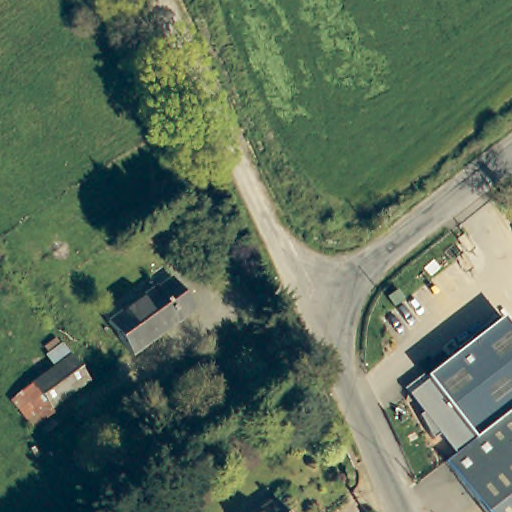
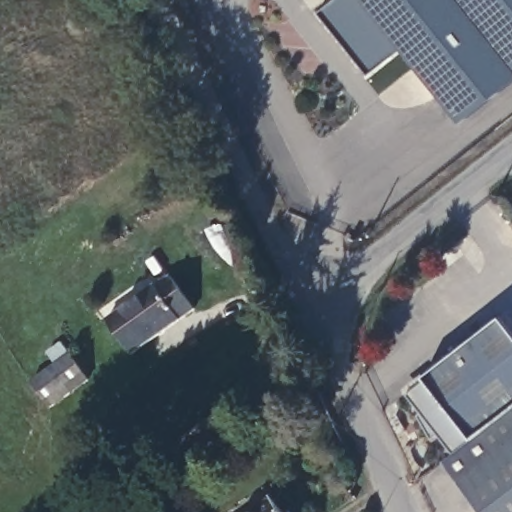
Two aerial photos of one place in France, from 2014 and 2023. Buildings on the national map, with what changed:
new [(403,50),(369,75),(321,12),(336,0),(512,0),(512,82),(460,123),(403,50)]
unchanged [(105,325),(168,278),(195,313),(131,358),(105,325)]
unchanged [(473,442),(459,454),(455,458),(439,438),(433,443),(420,420),(423,417),(408,399),(426,384),(424,381),(502,319),(512,332),(512,412),(502,419),(473,442)]
unchanged [(28,383),(51,364),(41,353),(59,340),(74,353),(96,379),(52,411),(29,426),(7,401),(28,383)]
unchanged [(502,419),(512,412),(512,512),(482,512),(445,466),(452,460),(455,458),(459,454),(473,442),(502,419)]
unchanged [(279,512),(254,512),(270,500),(279,512)]

